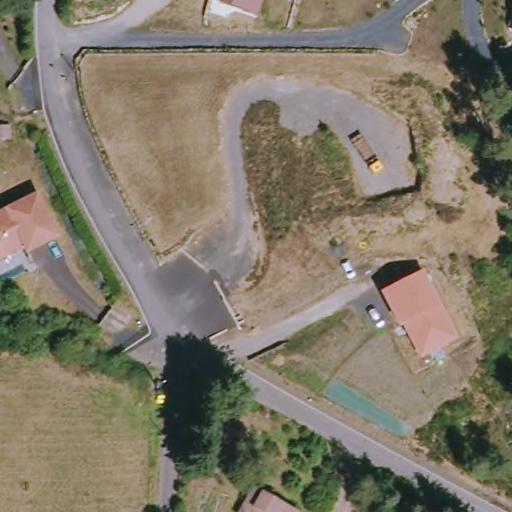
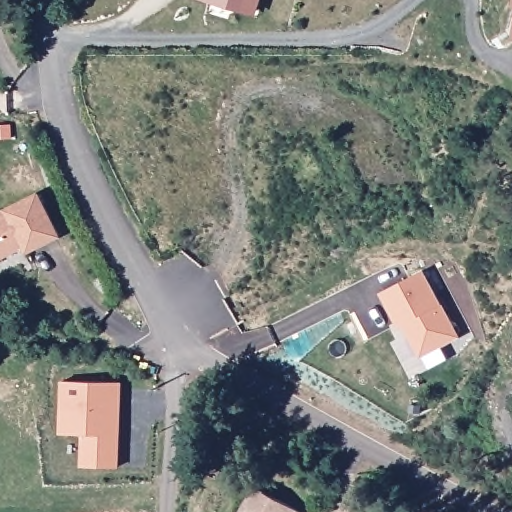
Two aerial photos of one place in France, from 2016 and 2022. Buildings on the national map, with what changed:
unchanged [(206,0),(259,0),(255,15),(206,0)]
new [(6,126),(8,136),(0,136),(0,126),(6,126)]
unchanged [(0,257),(0,213),(34,195),(56,236),(26,253),(23,248),(13,252),(0,257)]
unchanged [(402,325),(398,326),(379,292),(424,269),(441,304),(458,335),(418,357),(402,325)]
new [(62,381),(120,384),(119,467),(81,466),(82,434),(60,432),(62,381)]
unchanged [(293,512),(238,512),(251,489),(257,492),(293,512)]

